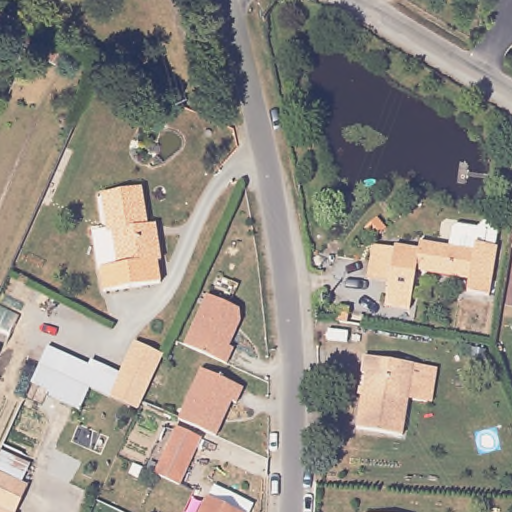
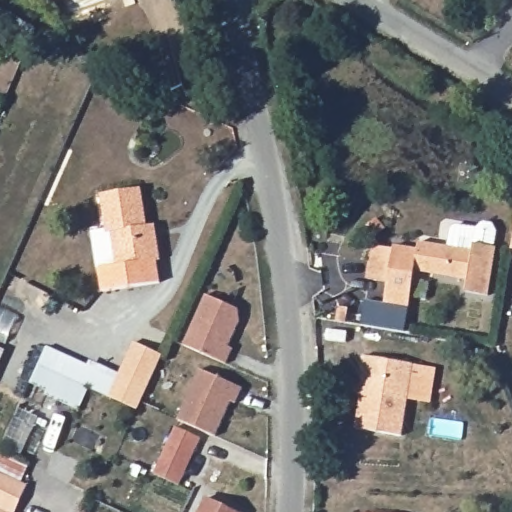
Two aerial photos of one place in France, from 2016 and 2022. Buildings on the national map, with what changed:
unchanged [(10,34),(0,28),(0,8),(39,30),(35,37),(14,26),(10,34)]
unchanged [(150,223),(157,224),(162,255),(158,256),(162,277),(107,287),(102,264),(120,258),(115,228),(109,226),(104,192),(144,186),(150,223)]
unchanged [(423,256),(425,249),(478,258),(480,250),(498,254),(492,300),(472,297),(474,283),(420,275),(413,314),(390,310),(394,287),(375,285),(378,255),(400,257),(400,253),(423,256)]
unchanged [(185,346),(206,296),(236,309),(240,320),(229,346),(235,349),(227,365),(221,362),(185,346)]
unchanged [(337,312),(340,297),(348,299),(346,314),(337,312)]
unchanged [(117,376),(107,397),(87,387),(76,416),(26,390),(48,344),(117,376)]
unchanged [(117,376),(132,344),(161,357),(135,410),(107,397),(117,376)]
unchanged [(406,363),(426,366),(421,401),(401,399),(396,435),(351,429),(357,374),(353,374),(356,357),(406,363)]
unchanged [(237,386),(242,389),(237,404),(231,401),(216,437),(179,421),(200,371),(237,386)]
unchanged [(154,470),(175,423),(197,433),(177,481),(154,470)]
unchanged [(16,511),(18,512),(0,512),(0,468),(30,482),(16,511)]
unchanged [(251,511),(250,512),(205,512),(214,494),(251,511)]

